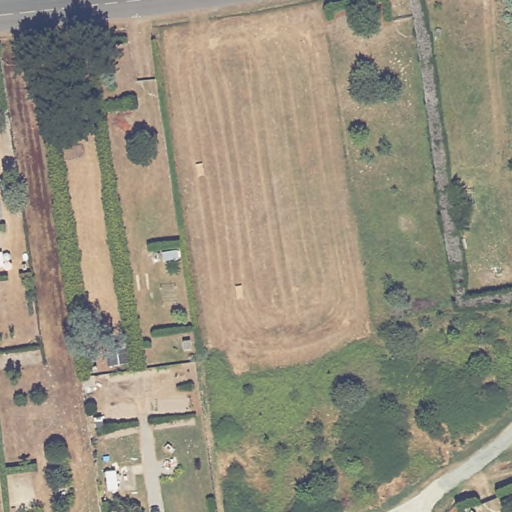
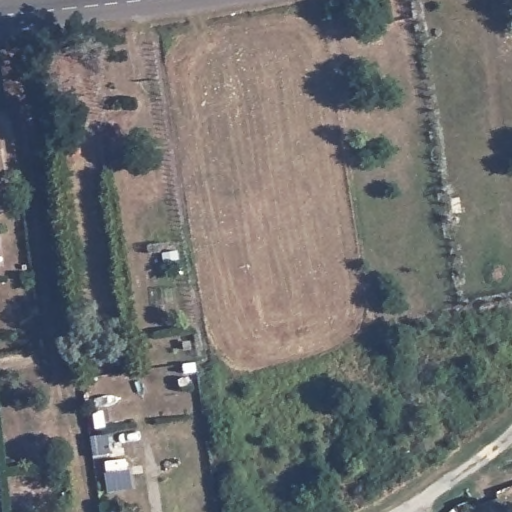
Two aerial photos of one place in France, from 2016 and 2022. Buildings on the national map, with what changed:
unchanged [(130,367),(108,368),(105,347),(127,341),(130,367)]

